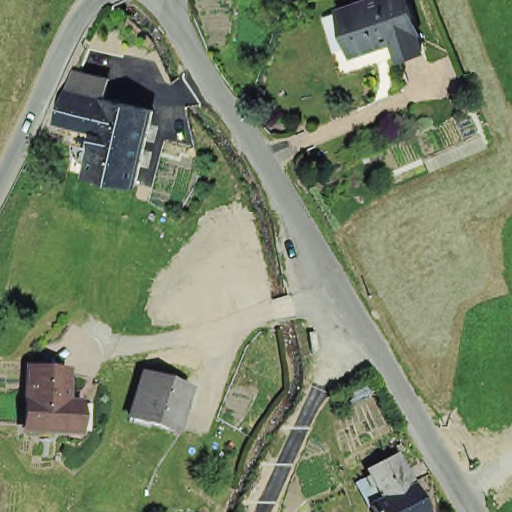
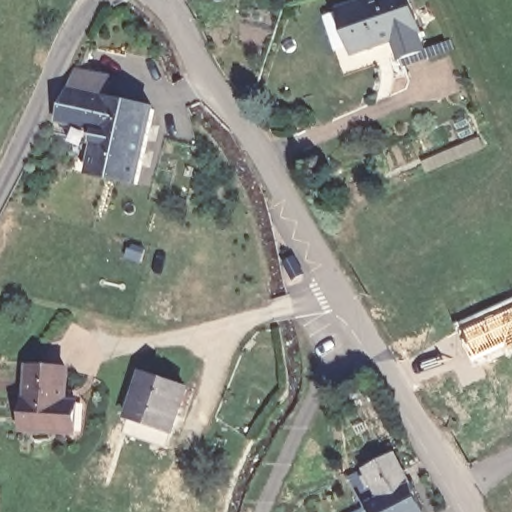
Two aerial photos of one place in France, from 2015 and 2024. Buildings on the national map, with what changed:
unchanged [(413,35),(417,49),(393,57),(386,36),(373,40),(375,45),(351,52),(337,8),(359,0),(404,0),(414,27),(413,35)]
unchanged [(90,171),(95,142),(50,129),(56,113),(67,89),(70,82),(75,67),(108,72),(105,94),(151,102),(143,143),(137,180),(90,171)]
new [(512,346),(510,342),(478,356),(465,330),(512,309),(512,346)]
unchanged [(24,357),(64,362),(61,391),(71,392),(68,422),(17,416),(24,357)]
unchanged [(163,432),(116,417),(131,374),(177,390),(163,432)]
unchanged [(361,477),(367,473),(365,472),(395,455),(412,486),(382,501),(375,487),(369,491),(361,477)]
unchanged [(382,501),(412,486),(425,512),(369,512),(367,508),(382,501)]

